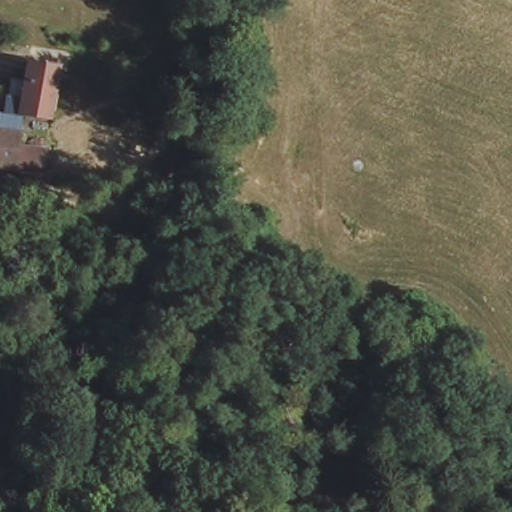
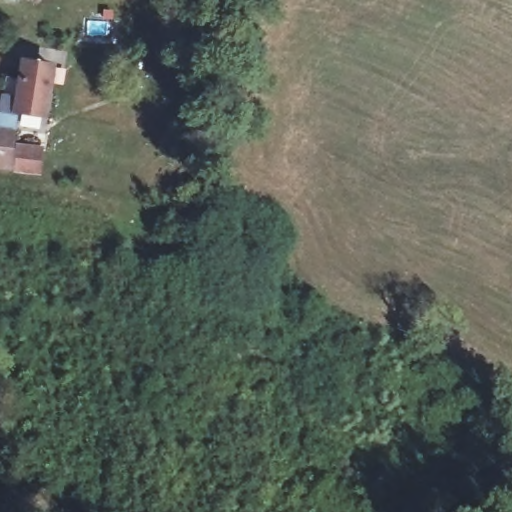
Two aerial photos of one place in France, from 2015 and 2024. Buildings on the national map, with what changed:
unchanged [(39,165),(33,190),(0,180),(0,116),(5,117),(11,81),(27,84),(30,68),(57,73),(49,117),(23,112),(22,120),(18,140),(15,159),(39,165)]

